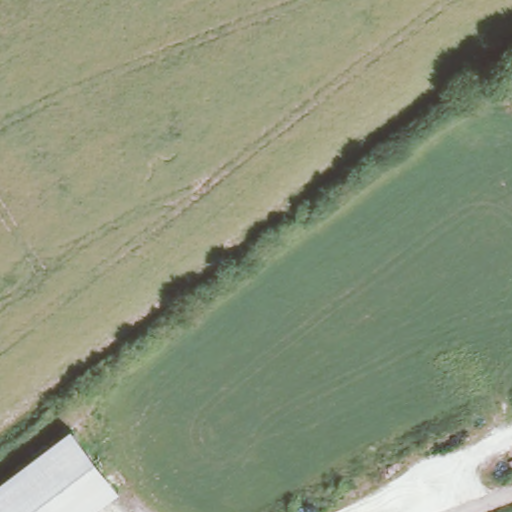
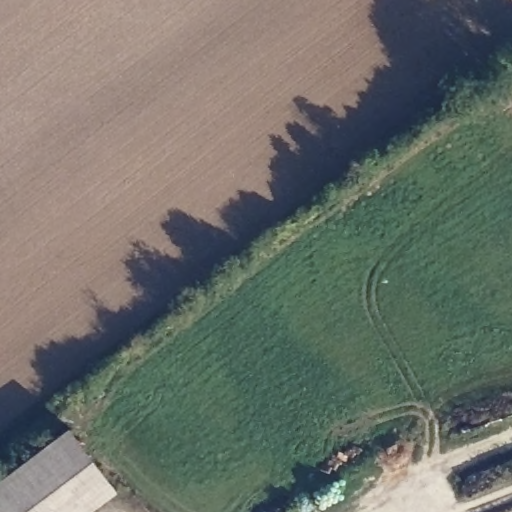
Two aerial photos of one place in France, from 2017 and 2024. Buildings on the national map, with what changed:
unchanged [(0,480),(71,427),(119,492),(93,512),(0,512),(0,480)]

